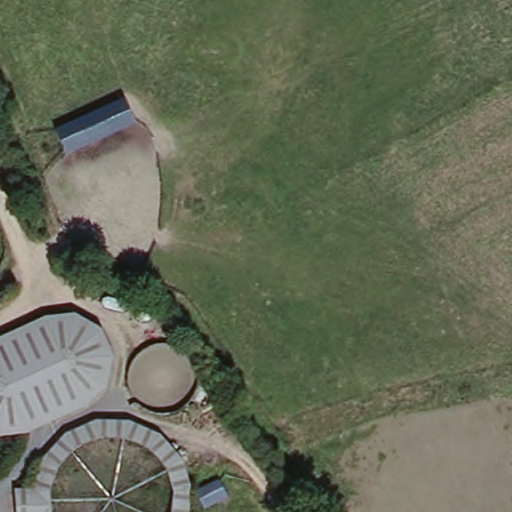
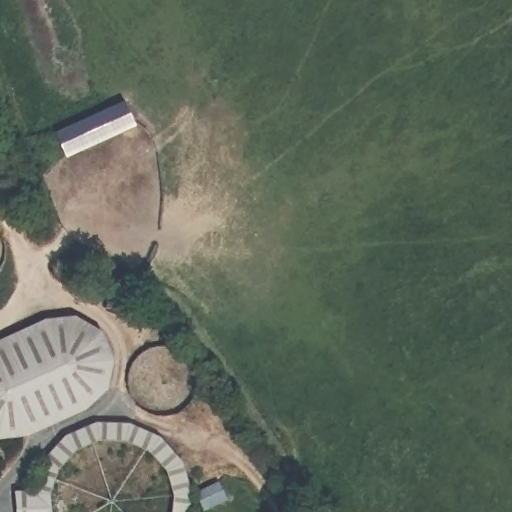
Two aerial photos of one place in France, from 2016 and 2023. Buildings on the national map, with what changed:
unchanged [(136,129),(65,159),(53,131),(124,101),(136,129)]
unchanged [(76,315),(104,332),(115,357),(111,388),(84,411),(34,433),(0,435),(0,339),(45,319),(76,315)]
unchanged [(31,489),(32,479),(35,469),(38,459),(49,447),(61,437),(73,430),(84,426),(103,422),(121,423),(144,428),(160,434),(176,449),(189,468),(196,493),(193,512),(168,512),(170,506),(170,488),(165,472),(150,454),(134,445),(117,442),(97,442),(76,450),(65,462),(58,472),(53,485),(52,498),(53,511),(53,512),(14,512),(12,493),(31,489)]
unchanged [(200,489),(223,479),(229,499),(206,511),(200,489)]

